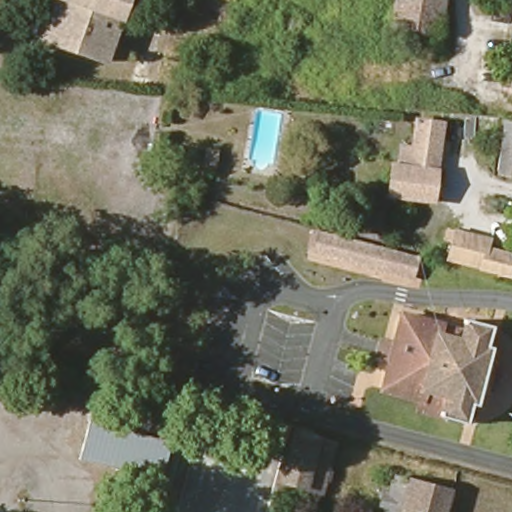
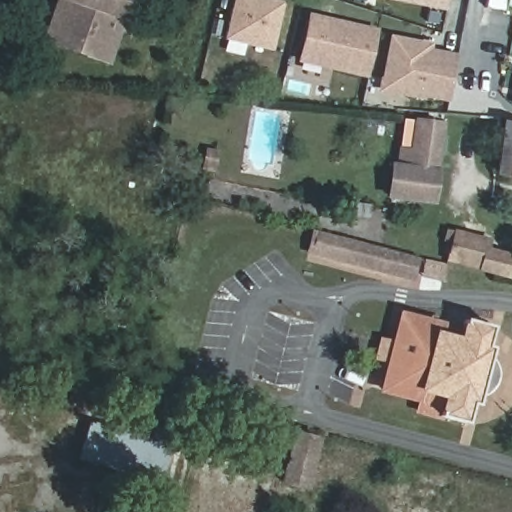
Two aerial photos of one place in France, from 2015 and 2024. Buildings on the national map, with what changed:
unchanged [(95,61),(33,40),(47,0),(116,0),(113,11),(95,61)]
new [(274,51),(227,39),(236,0),(274,0),(284,2),(274,51)]
demolished [(442,36),(392,29),(396,0),(448,0),(442,36)]
new [(407,0),(448,0),(447,7),(407,0)]
new [(299,62),(310,13),(379,29),(369,78),(299,62)]
new [(449,100),(384,86),(394,39),(429,46),(429,52),(457,58),(449,100)]
unchanged [(433,196),(391,190),(394,159),(399,160),(401,141),(413,143),(417,115),(443,119),(433,196)]
unchanged [(497,168),(504,116),(512,118),(512,172),(497,168)]
unchanged [(214,162),(207,160),(209,150),(216,152),(214,162)]
unchanged [(512,251),(512,271),(453,255),(458,238),(450,236),(453,227),(494,237),(492,246),(512,251)]
unchanged [(412,277),(309,251),(314,231),(417,258),(412,277)]
unchanged [(419,405),(422,395),(383,385),(391,356),(378,352),(382,335),(394,338),(402,310),(464,325),(466,319),(464,318),(464,315),(491,321),(496,323),(491,342),(489,352),(489,353),(490,354),(491,355),(493,358),(494,361),(495,363),(496,365),(496,367),(497,370),(496,372),(496,374),(495,376),(494,378),(493,380),(491,382),(489,383),(488,385),(486,386),(484,387),(481,389),(479,390),(476,399),(471,419),(466,417),(419,405)]
unchanged [(161,480),(80,459),(90,421),(171,443),(161,480)]
unchanged [(305,488),(282,481),(295,430),(319,436),(305,488)]
unchanged [(334,441),(322,492),(317,509),(278,498),(282,481),(305,488),(319,436),(334,441)]
unchanged [(451,491),(446,512),(385,512),(394,477),(451,491)]

